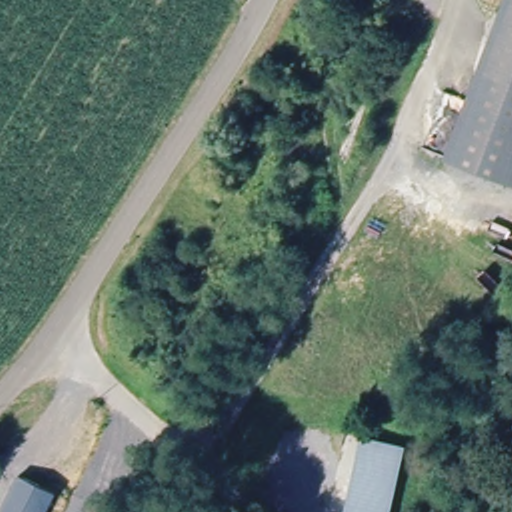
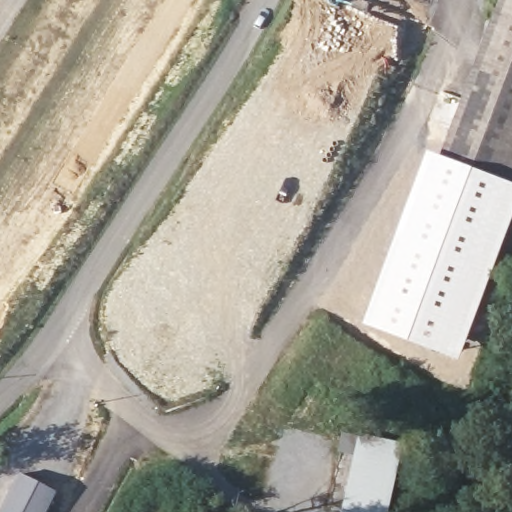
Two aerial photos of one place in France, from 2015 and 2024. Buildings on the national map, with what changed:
unchanged [(512,4),(512,119),(473,104),(512,4)]
unchanged [(451,160),(466,122),(473,104),(512,119),(512,183),(451,160)]
new [(462,362),(366,325),(432,153),(451,160),(512,183),(512,233),(462,362)]
unchanged [(407,446),(402,467),(392,512),(352,512),(369,438),(398,445),(407,446)]
unchanged [(47,512),(2,512),(21,475),(57,493),(47,512)]

